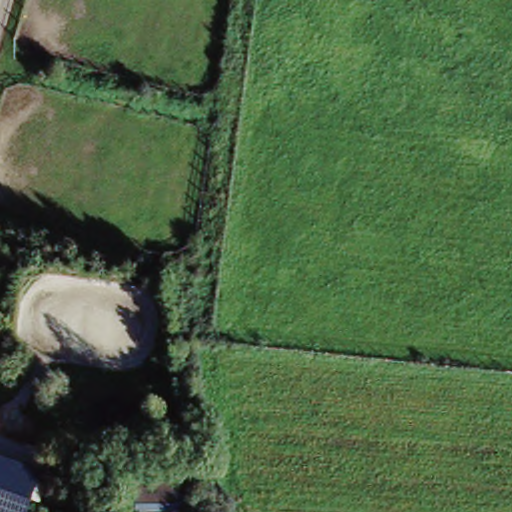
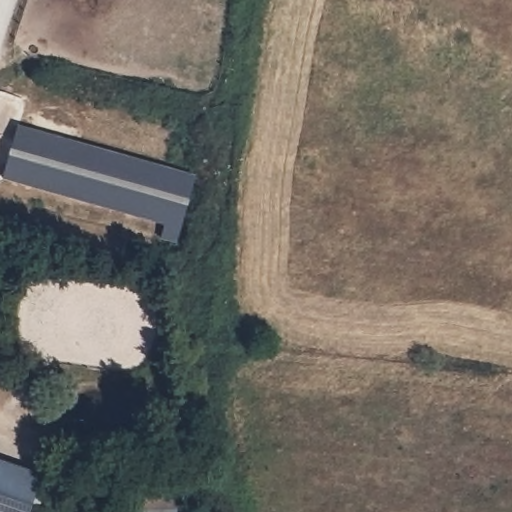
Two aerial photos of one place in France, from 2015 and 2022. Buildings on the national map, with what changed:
new [(198,182),(178,248),(163,244),(168,230),(7,180),(23,130),(198,182)]
new [(43,475),(38,493),(0,479),(0,460),(43,475)]
unchanged [(39,493),(32,512),(0,512),(0,479),(39,493)]
unchanged [(136,512),(138,485),(193,481),(194,512),(136,512)]

